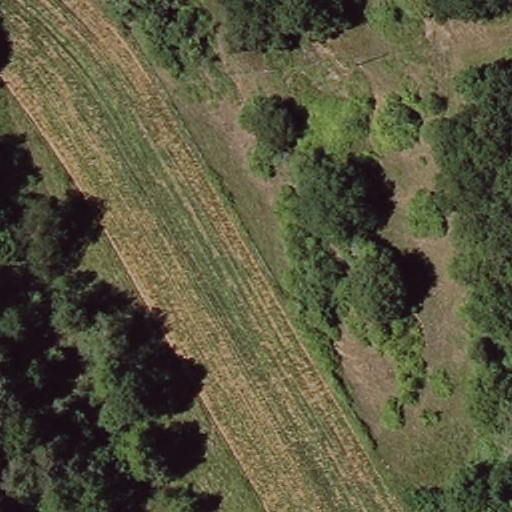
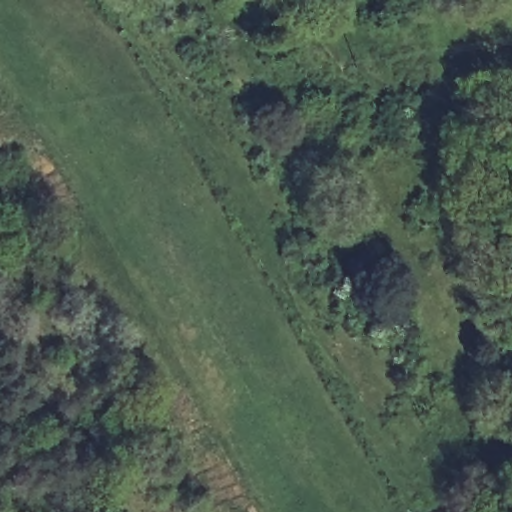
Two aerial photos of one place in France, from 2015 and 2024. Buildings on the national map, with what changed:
[]

